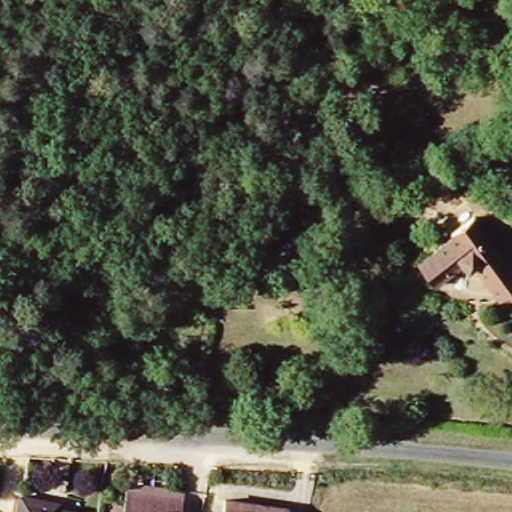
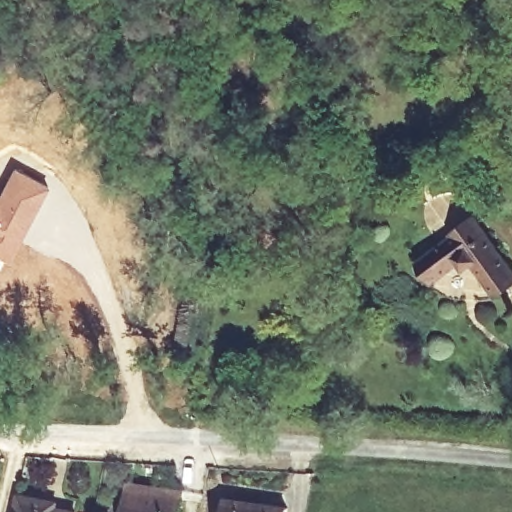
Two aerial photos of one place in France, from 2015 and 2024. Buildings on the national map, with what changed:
new [(13,167),(49,187),(10,261),(0,255),(0,190),(13,167)]
unchanged [(465,272),(459,263),(430,278),(420,259),(459,239),(453,228),(478,215),(512,278),(512,288),(493,299),(475,268),(465,272)]
unchanged [(124,492),(181,502),(180,512),(122,512),(124,492)]
unchanged [(18,498),(60,503),(59,512),(16,512),(18,498)]
unchanged [(223,506),(263,512),(222,512),(223,506)]

